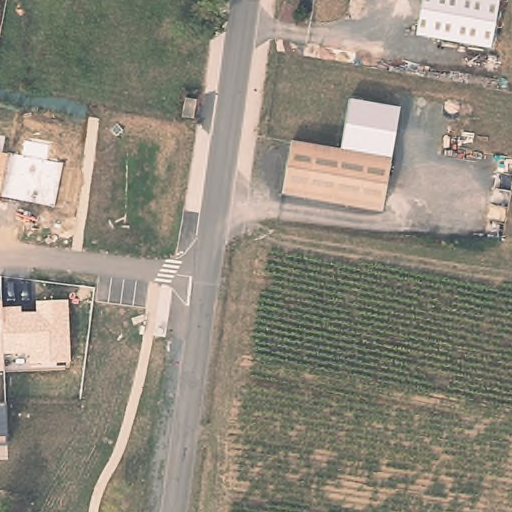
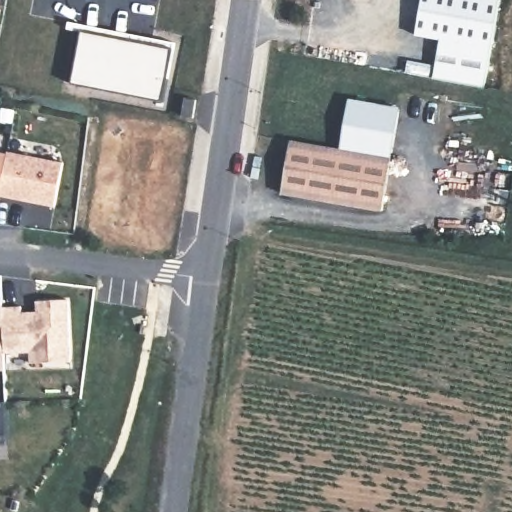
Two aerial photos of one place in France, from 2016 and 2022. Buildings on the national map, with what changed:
unchanged [(415,37),(421,0),(499,0),(491,50),(415,37)]
new [(81,29),(172,47),(163,99),(73,83),(81,29)]
unchanged [(350,98),(401,106),(393,158),(341,150),(350,98)]
unchanged [(292,142),(393,158),(385,211),(283,195),(292,142)]
unchanged [(8,152),(8,149),(63,161),(55,205),(0,194),(0,151),(8,152)]
unchanged [(71,359),(30,362),(29,352),(4,352),(7,369),(0,369),(0,299),(3,298),(3,306),(22,305),(23,310),(38,309),(37,300),(69,298),(71,359)]
unchanged [(10,442),(0,443),(0,403),(6,402),(10,442)]

